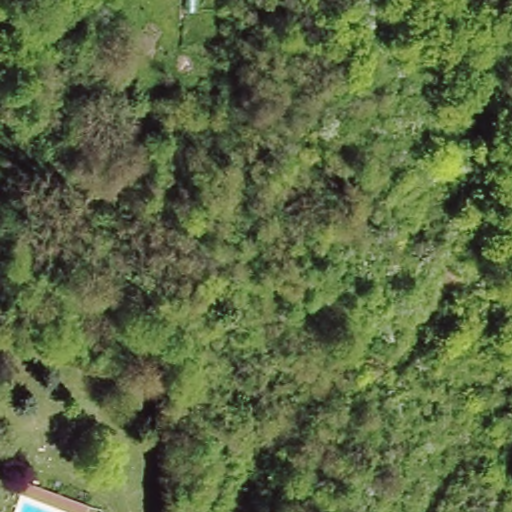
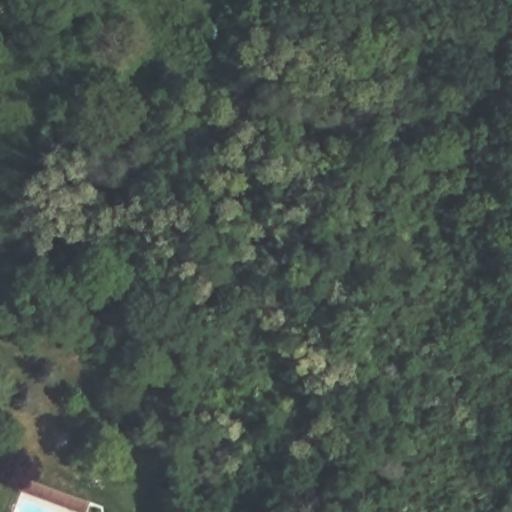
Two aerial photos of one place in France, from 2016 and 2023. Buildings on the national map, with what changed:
unchanged [(22,476),(88,500),(85,512),(80,512),(19,490),(22,476)]

